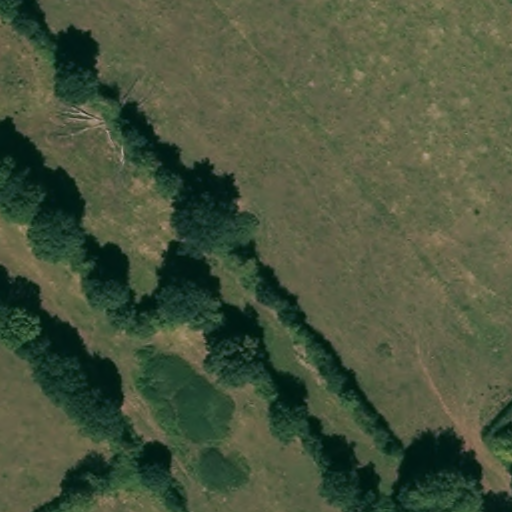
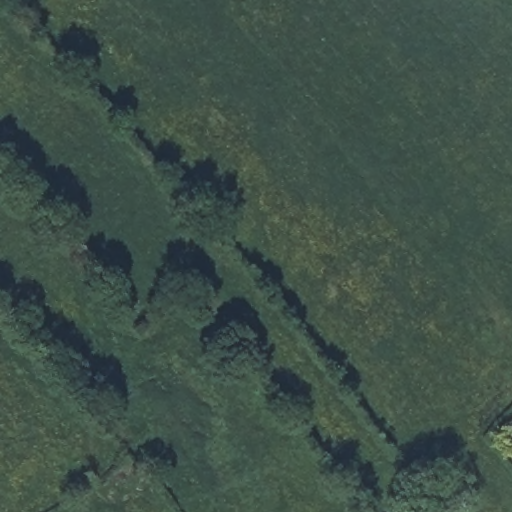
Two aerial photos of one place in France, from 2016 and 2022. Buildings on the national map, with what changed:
unchanged [(449,512),(432,512),(443,504),(449,512)]

